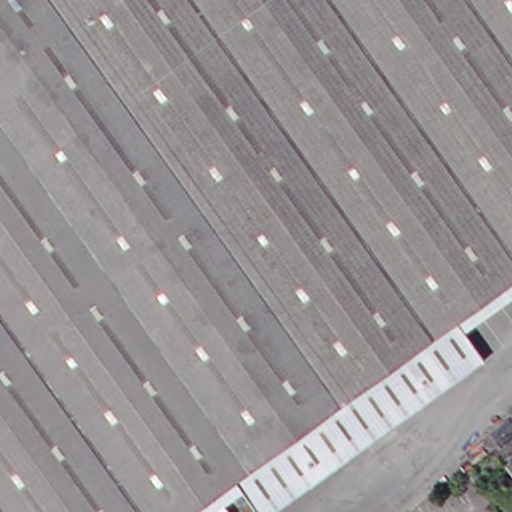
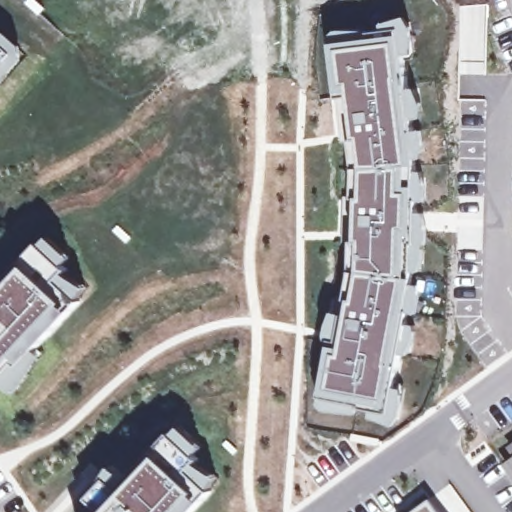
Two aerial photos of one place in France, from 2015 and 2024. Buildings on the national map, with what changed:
demolished [(459,323),(478,351),(259,508),(239,482),(237,478),(231,471),(173,512),(0,512),(0,0),(512,0),(512,270),(452,313),(459,323)]
new [(340,0),(485,0),(487,76),(461,75),(461,52),(433,56),(446,165),(442,281),(416,417),(381,442),(313,426),(330,340),(336,340),(343,316),(336,313),(340,297),(346,298),(353,269),(354,212),(347,213),(348,197),(355,197),(352,142),(344,142),(343,125),(352,122),(348,96),(339,98),(329,24),(343,22),(340,0)]
new [(14,54),(0,68),(0,41),(14,54)]
new [(39,246),(64,271),(56,279),(79,301),(19,365),(15,361),(0,379),(0,286),(39,246)]
new [(100,510),(89,500),(109,478),(120,488),(171,434),(197,459),(188,470),(211,491),(191,512),(98,512),(100,510)]
unchanged [(512,463),(512,470),(509,466),(512,463)]
new [(430,501),(438,512),(414,512),(430,501)]

